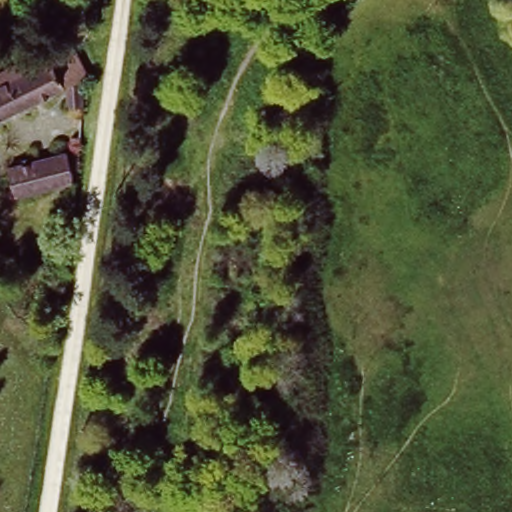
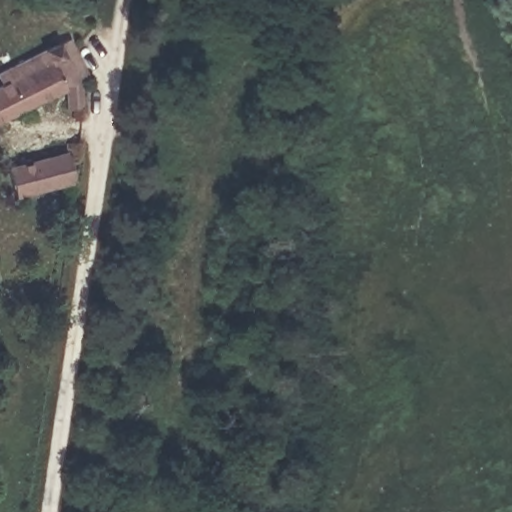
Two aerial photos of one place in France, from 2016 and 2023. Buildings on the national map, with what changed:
unchanged [(61,55),(71,51),(82,75),(76,77),(72,112),(62,111),(65,90),(0,117),(0,82),(0,69),(56,44),(61,55)]
unchanged [(14,190),(7,162),(61,148),(69,176),(14,190)]

